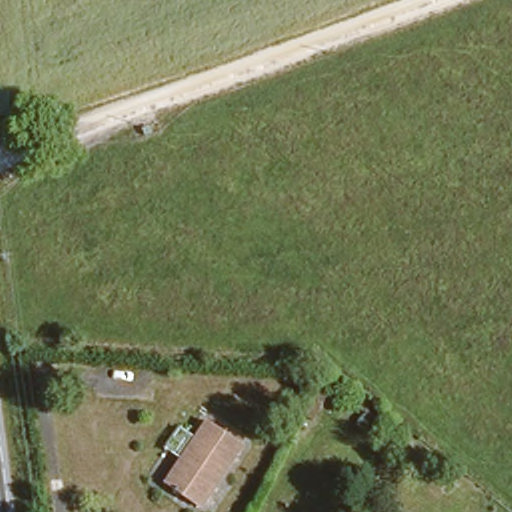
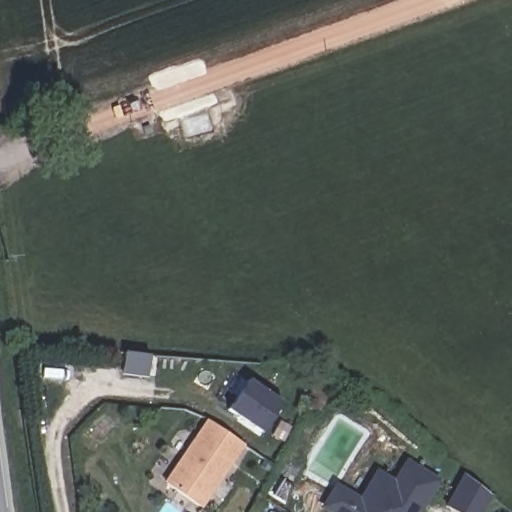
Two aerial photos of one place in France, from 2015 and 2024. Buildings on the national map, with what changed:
new [(264,431),(230,407),(251,378),(285,402),(264,431)]
unchanged [(243,439),(219,469),(202,473),(204,487),(192,501),(157,473),(207,411),(243,439)]
new [(420,512),(335,512),(327,507),(339,487),(362,501),(379,474),(397,484),(409,463),(439,481),(420,512)]
new [(469,512),(453,503),(471,474),(499,495),(489,512),(469,512)]

